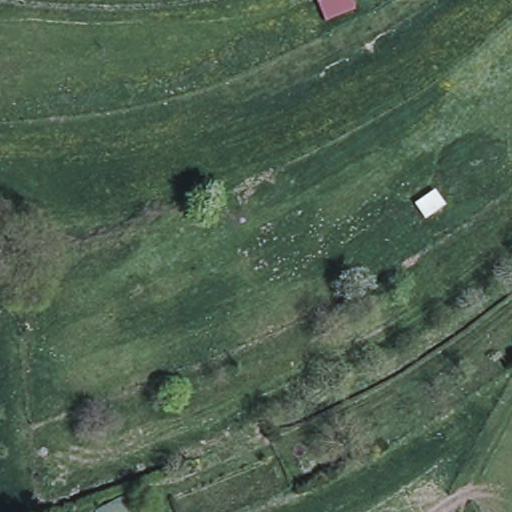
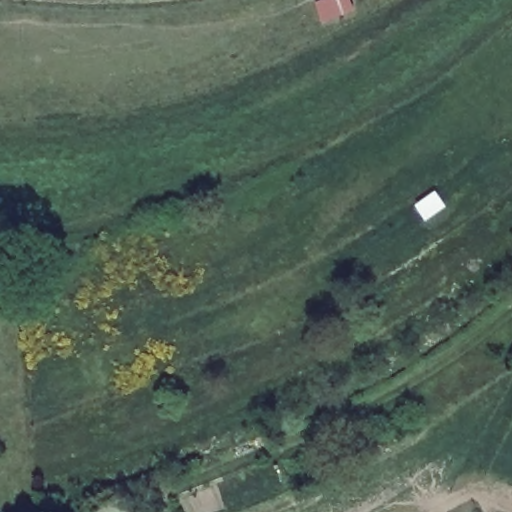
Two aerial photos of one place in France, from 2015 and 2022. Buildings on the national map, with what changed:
unchanged [(132,498),(139,512),(103,512),(102,511),(132,498)]

